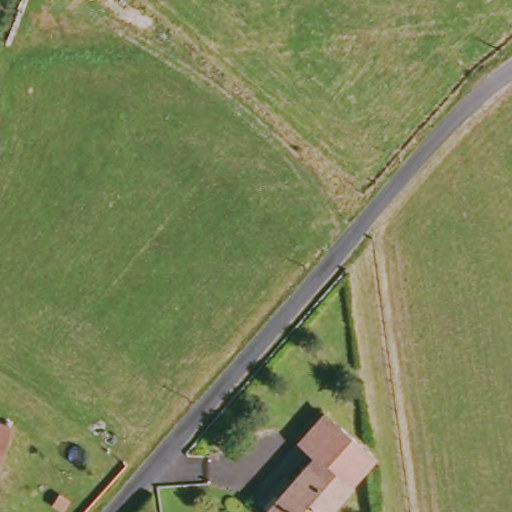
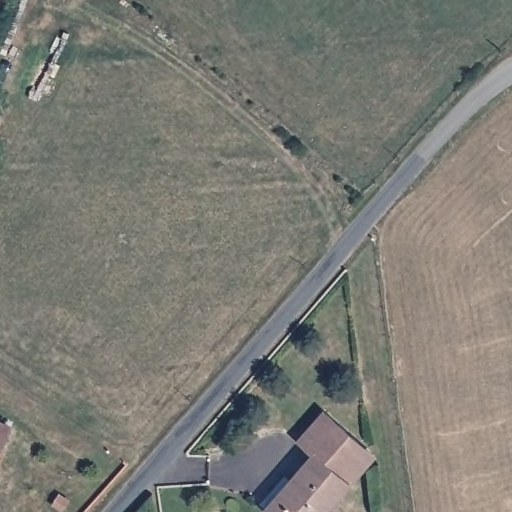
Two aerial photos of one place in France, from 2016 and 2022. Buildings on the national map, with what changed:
unchanged [(380,462),(337,512),(273,512),(318,458),(302,445),(330,416),(380,462)]
unchanged [(13,432),(0,467),(0,427),(13,432)]

